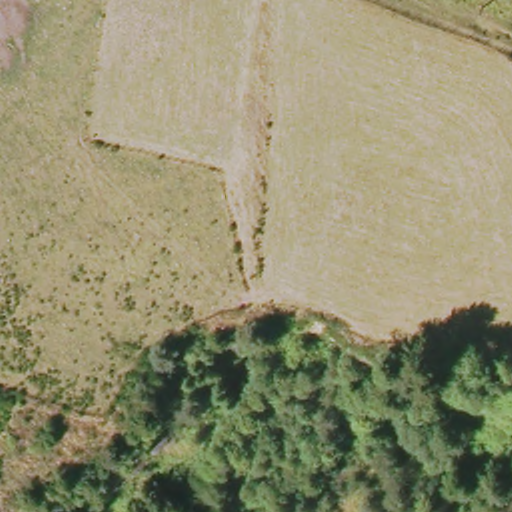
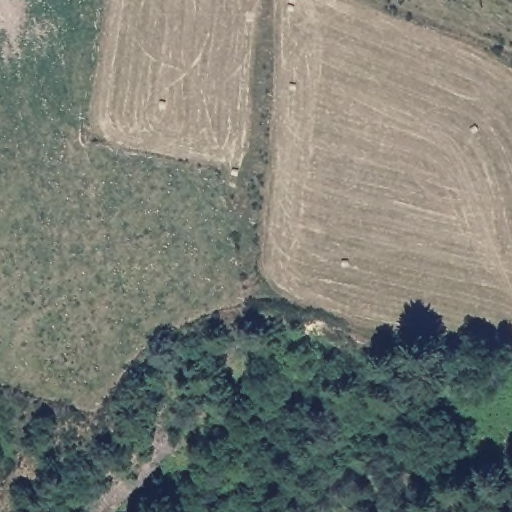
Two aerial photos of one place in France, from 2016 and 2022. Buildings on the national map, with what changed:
[]

